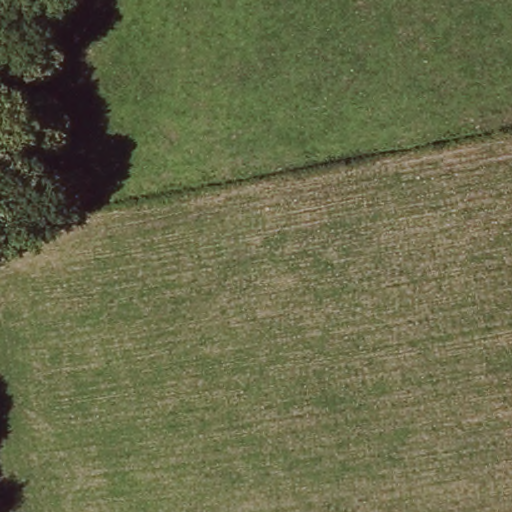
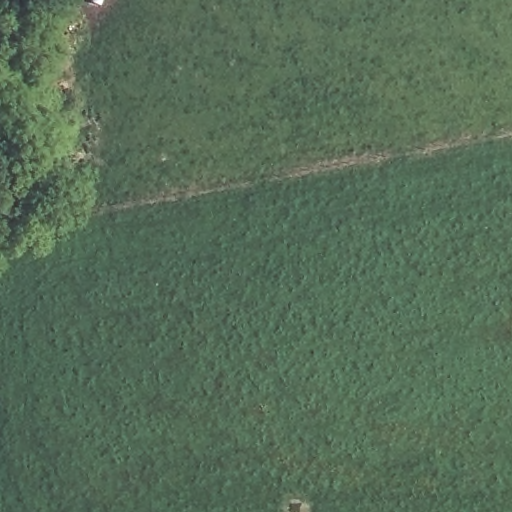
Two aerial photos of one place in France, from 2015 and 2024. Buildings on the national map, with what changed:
[]

